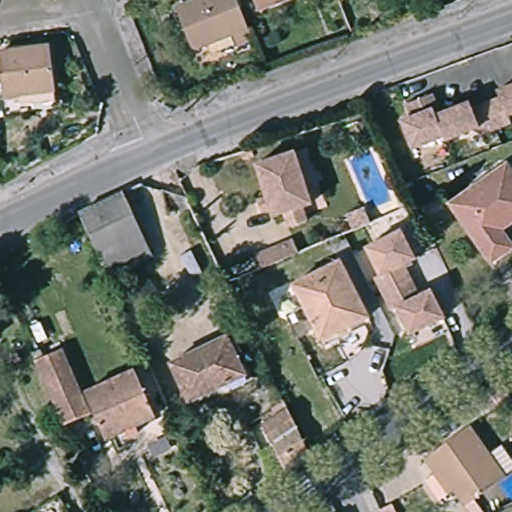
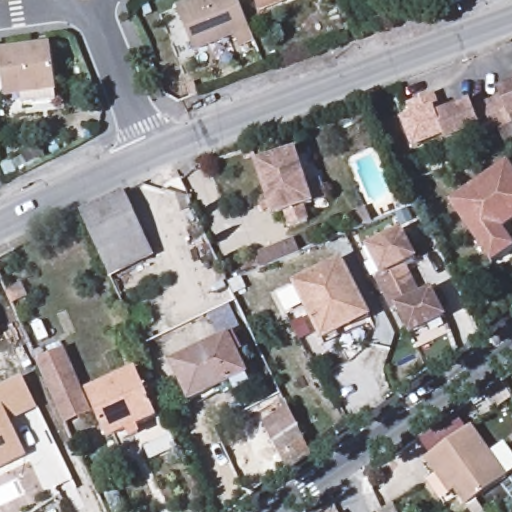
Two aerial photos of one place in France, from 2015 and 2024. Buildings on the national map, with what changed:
unchanged [(201,50),(184,3),(190,0),(242,0),(254,30),(201,50)]
unchanged [(259,2),(258,0),(264,0),(259,2)]
unchanged [(428,16),(418,20),(412,5),(423,1),(428,16)]
unchanged [(10,98),(5,57),(51,51),(56,91),(10,98)]
unchanged [(408,103),(434,93),(442,112),(471,101),(474,107),(502,96),(499,90),(512,84),(512,114),(510,115),(512,121),(512,122),(482,134),(480,127),(445,140),(444,136),(413,148),(402,120),(413,116),(408,103)]
unchanged [(314,202),(304,205),(309,220),(292,225),(287,211),(275,215),(259,165),(297,152),(314,202)]
unchanged [(510,234),(512,238),(512,259),(498,270),(458,209),(512,171),(512,232),(510,234)]
unchanged [(140,235),(151,257),(108,277),(88,233),(79,212),(107,199),(122,192),(142,234),(140,235)]
unchanged [(355,231),(349,217),(367,209),(373,223),(355,231)]
unchanged [(376,276),(380,274),(368,246),(403,230),(417,260),(406,264),(413,279),(384,293),(376,276)]
unchanged [(254,259),(280,248),(289,245),(292,252),(294,256),(259,271),(254,259)]
unchanged [(369,316),(321,339),(296,282),(342,259),(369,316)]
unchanged [(413,279),(421,294),(432,288),(442,307),(445,312),(446,314),(408,332),(396,307),(392,309),(384,293),(413,279)]
unchanged [(21,284),(26,296),(10,303),(5,291),(21,284)]
unchanged [(233,340),(250,379),(194,404),(177,365),(233,340)]
unchanged [(63,353),(72,372),(74,371),(94,415),(70,425),(42,363),(63,353)]
unchanged [(160,416),(110,438),(90,394),(141,371),(160,416)]
new [(27,457),(0,470),(0,388),(22,377),(39,411),(11,424),(27,457)]
unchanged [(284,471),(262,422),(288,409),(309,454),(284,471)]
unchanged [(474,505),(448,470),(443,473),(432,458),(477,426),(512,475),(512,477),(474,505)]

